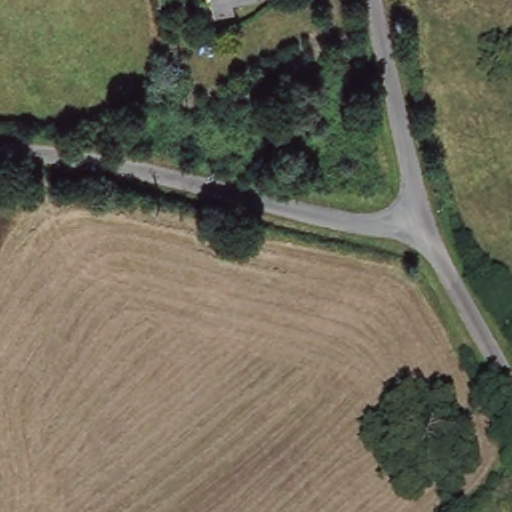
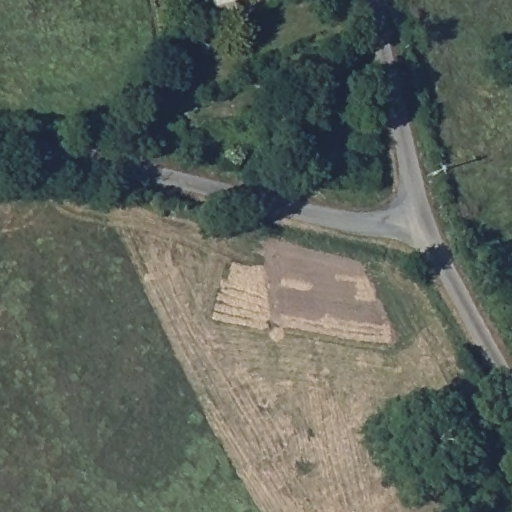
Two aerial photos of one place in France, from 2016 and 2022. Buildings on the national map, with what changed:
unchanged [(215,0),(242,0),(217,7),(215,0)]

